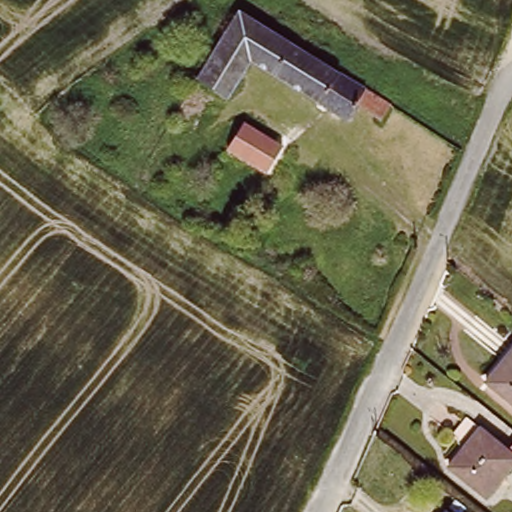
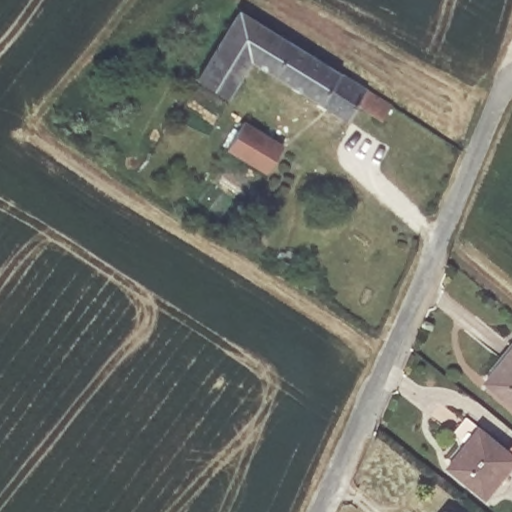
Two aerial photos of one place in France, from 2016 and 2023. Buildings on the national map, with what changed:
unchanged [(246,5),(394,101),(382,120),(357,105),(346,120),(252,58),(226,98),(197,77),(246,5)]
unchanged [(233,150),(222,141),(232,125),(239,128),(242,120),(286,149),(267,173),(233,150)]
unchanged [(512,344),(512,403),(487,377),(512,344)]
unchanged [(492,496),(455,468),(484,433),(512,453),(512,469),(492,496)]
unchanged [(512,440),(512,453),(505,448),(512,440)]

